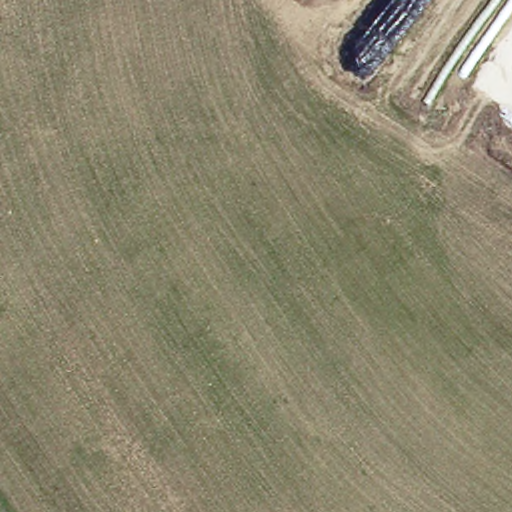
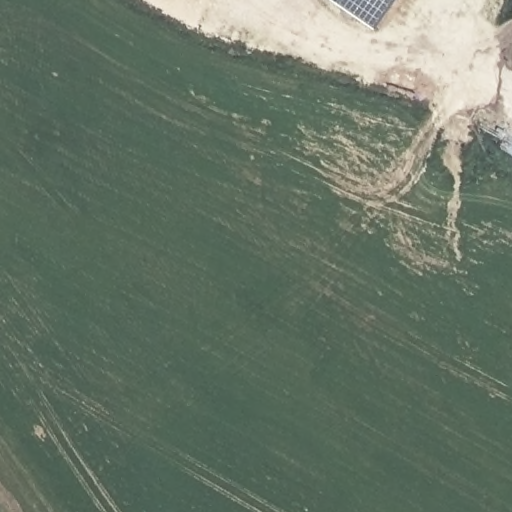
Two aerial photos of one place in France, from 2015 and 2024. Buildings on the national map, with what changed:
new [(399,0),(378,30),(336,0),(399,0)]

